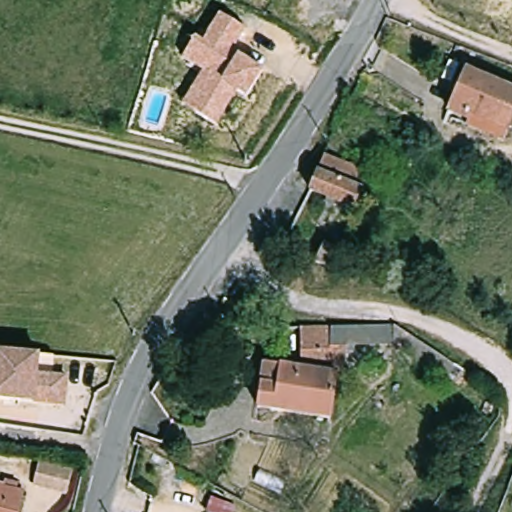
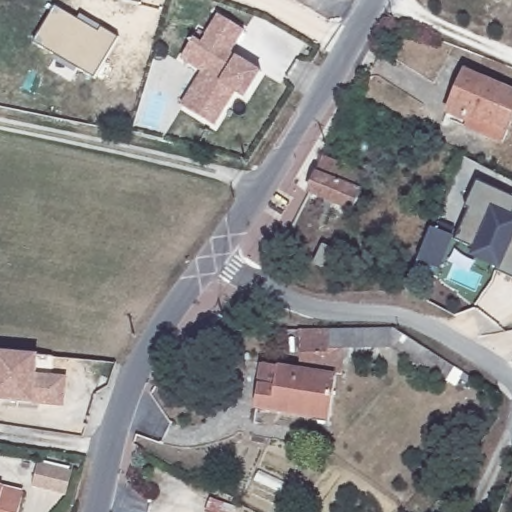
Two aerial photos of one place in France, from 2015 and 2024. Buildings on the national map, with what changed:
new [(35,42),(56,7),(99,33),(102,28),(119,39),(94,77),(35,42)]
unchanged [(247,31),(229,55),(238,57),(264,72),(248,101),(236,95),(218,127),(184,104),(202,73),(183,62),(196,36),(204,41),(221,16),(247,31)]
unchanged [(467,127),(469,122),(447,112),(466,71),(512,91),(512,119),(507,132),(502,143),(467,127)]
unchanged [(353,212),(308,193),(321,157),(367,176),(353,212)]
new [(468,210),(464,208),(477,181),(512,197),(512,216),(511,219),(512,220),(512,280),(494,272),(496,266),(473,256),(475,251),(454,241),(468,210)]
new [(434,234),(437,228),(452,234),(446,247),(435,273),(415,265),(429,231),(434,234)]
unchanged [(333,273),(314,263),(322,247),(341,256),(333,273)]
unchanged [(453,362),(445,373),(398,345),(395,348),(336,349),(336,329),(398,328),(453,362)]
unchanged [(311,330),(336,329),(336,349),(337,372),(313,367),(312,356),(306,355),(304,330),(311,330)]
unchanged [(0,351),(15,352),(36,354),(34,374),(64,377),(63,405),(31,402),(17,401),(0,400),(0,351)]
unchanged [(334,421),(261,410),(268,366),(341,376),(334,421)]
unchanged [(68,471),(63,493),(29,486),(34,463),(68,471)]
unchanged [(4,482),(18,485),(16,492),(23,493),(18,512),(0,512),(0,488),(2,488),(4,482)]

